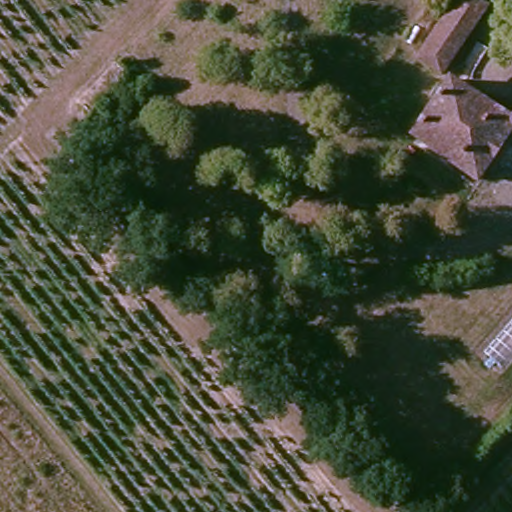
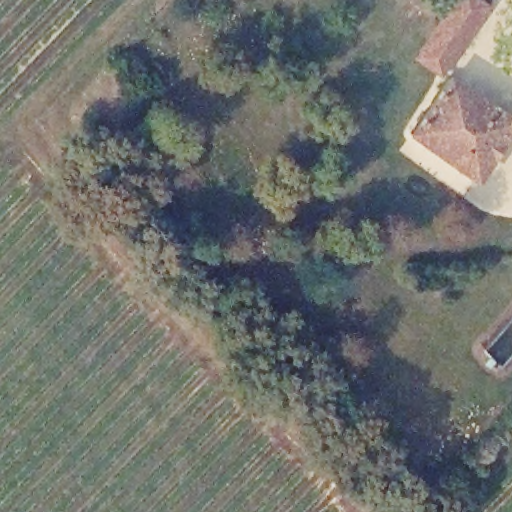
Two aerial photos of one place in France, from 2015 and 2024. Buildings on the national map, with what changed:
unchanged [(479,0),(483,4),(437,69),(417,55),(458,0),(479,0)]
unchanged [(104,99),(122,111),(114,124),(79,100),(115,53),(129,64),(104,99)]
unchanged [(448,79),(503,117),(509,109),(512,108),(512,135),(506,133),(472,182),(407,136),(448,79)]

